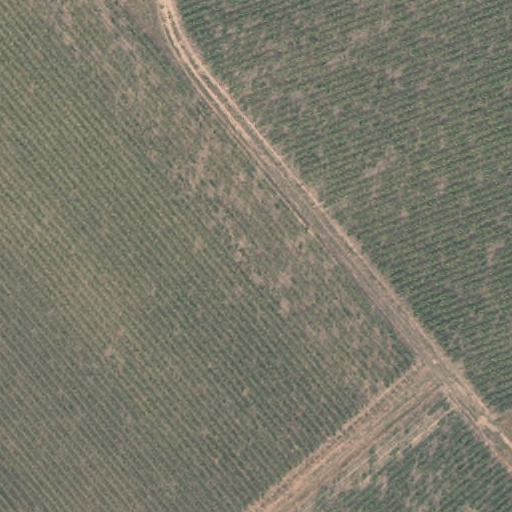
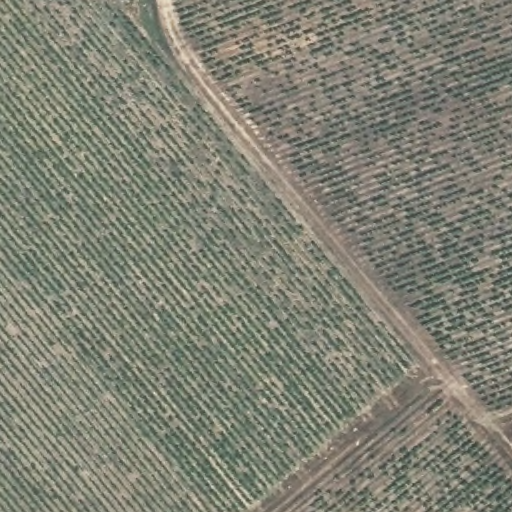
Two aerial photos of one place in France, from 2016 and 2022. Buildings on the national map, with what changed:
unchanged [(121,3),(119,0),(125,0),(121,3)]

